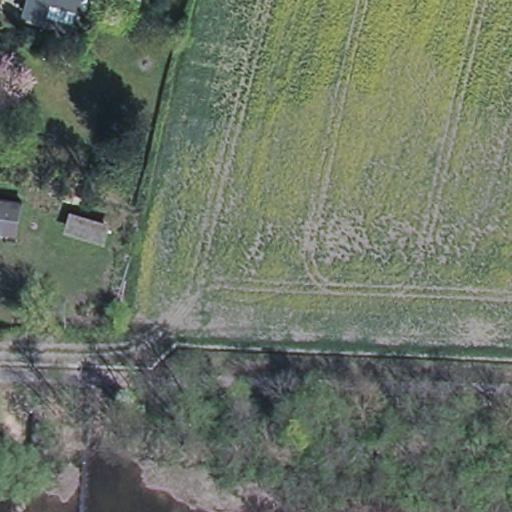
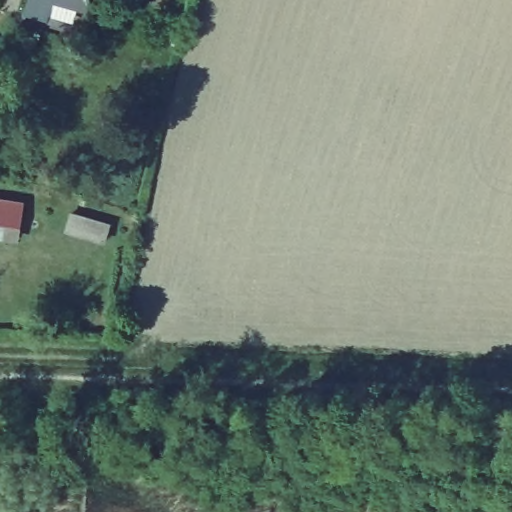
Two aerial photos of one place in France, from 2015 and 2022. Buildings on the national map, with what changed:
unchanged [(26,2),(27,0),(48,0),(45,7),(26,2)]
unchanged [(67,209),(109,220),(105,244),(62,237),(67,209)]
unchanged [(16,213),(14,227),(5,226),(5,231),(0,230),(0,211),(16,213)]

